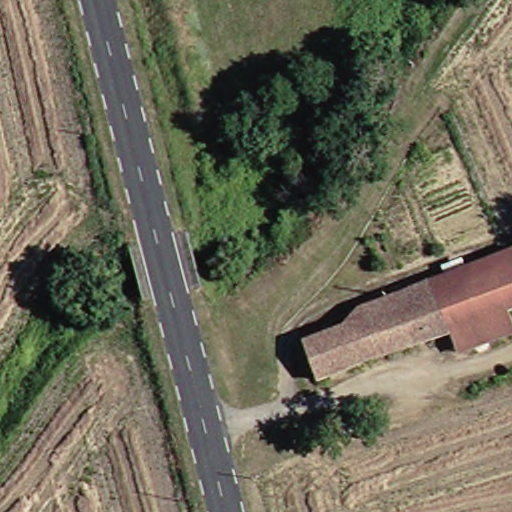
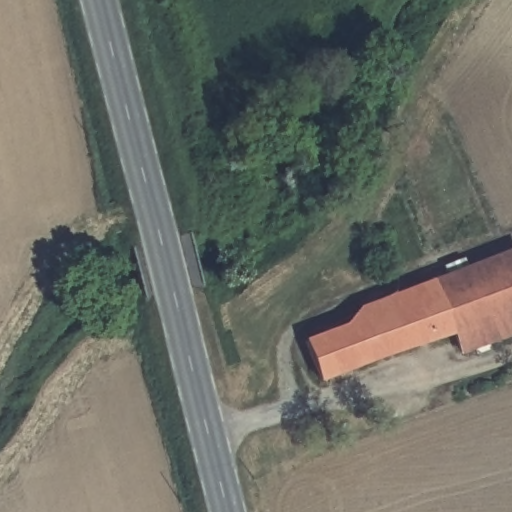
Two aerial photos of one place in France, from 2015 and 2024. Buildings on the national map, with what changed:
unchanged [(512,250),(512,307),(461,326),(319,379),(304,339),(351,323),(361,309),(373,304),(512,250)]
unchanged [(512,334),(470,349),(461,326),(512,307),(512,334)]

